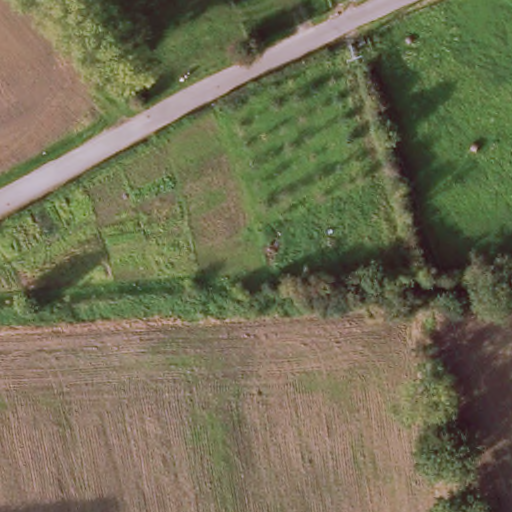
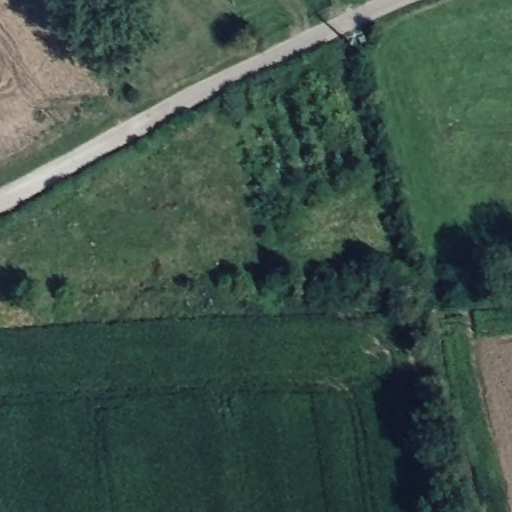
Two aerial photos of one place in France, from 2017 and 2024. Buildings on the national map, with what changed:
[]

